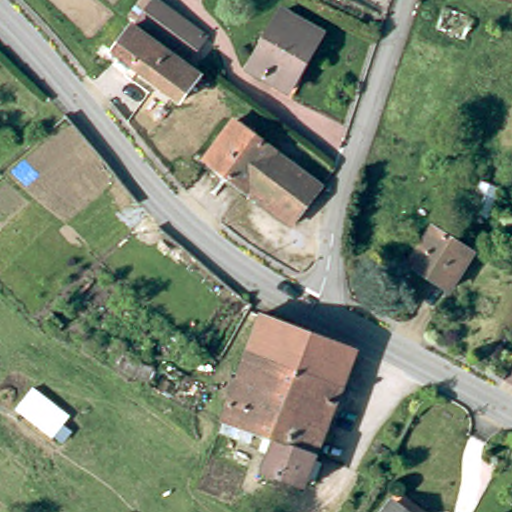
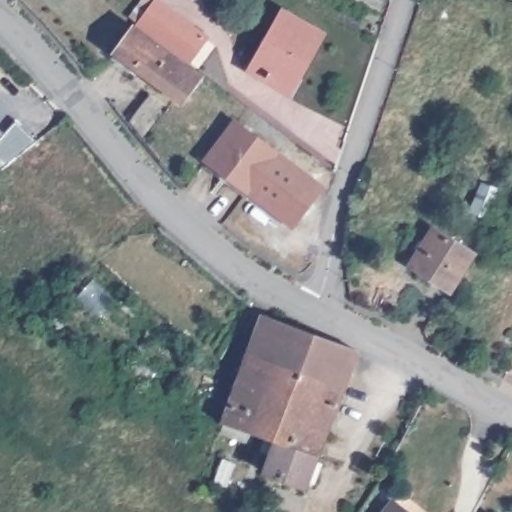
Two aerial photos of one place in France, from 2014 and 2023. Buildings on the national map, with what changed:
unchanged [(214,42),(194,64),(150,23),(170,1),(214,42)]
unchanged [(292,5),(330,29),(298,85),(257,64),(292,5)]
unchanged [(122,46),(143,25),(202,80),(183,102),(122,46)]
new [(16,120),(37,141),(0,169),(0,128),(5,132),(16,120)]
unchanged [(321,185),(296,223),(207,165),(232,125),(321,185)]
unchanged [(475,193),(491,197),(484,224),(468,220),(475,193)]
unchanged [(449,288),(409,267),(429,231),(468,251),(449,288)]
unchanged [(264,314),(342,343),(360,349),(345,386),(297,368),(250,350),(264,314)]
unchanged [(224,417),(250,350),(297,368),(271,436),(224,417)]
unchanged [(345,386),(317,455),(274,438),(271,436),(297,368),(345,386)]
unchanged [(312,485),(307,483),(305,487),(284,480),(280,491),(253,482),(256,476),(260,477),(274,438),(317,455),(315,462),(322,465),(312,485)]
unchanged [(408,512),(383,512),(393,500),(408,512)]

